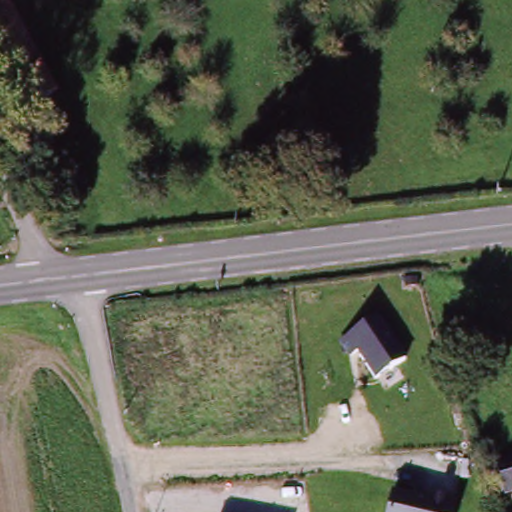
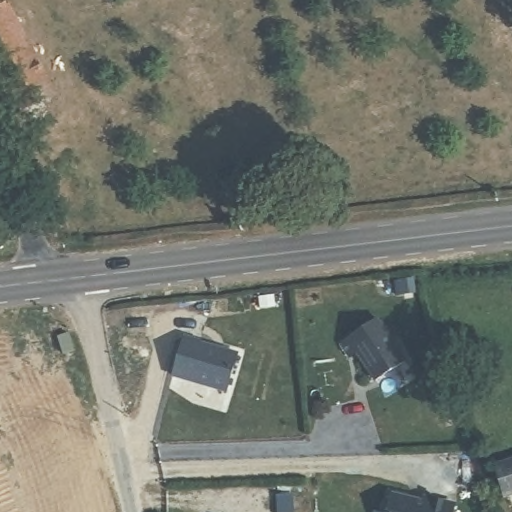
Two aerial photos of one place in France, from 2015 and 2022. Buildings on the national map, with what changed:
unchanged [(0,78),(0,1),(57,89),(22,111),(0,78)]
unchanged [(356,354),(350,358),(341,342),(380,319),(409,362),(375,382),(356,354)]
new [(239,352),(227,392),(172,375),(185,334),(239,352)]
unchanged [(490,466),(512,459),(512,497),(500,501),(490,466)]
unchanged [(422,496),(455,505),(453,512),(385,512),(390,493),(421,501),(422,496)]

